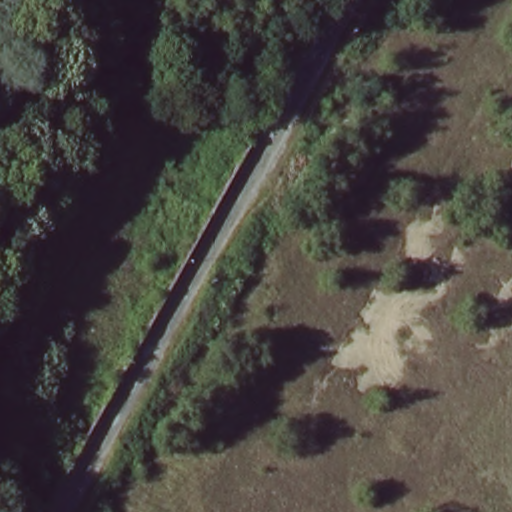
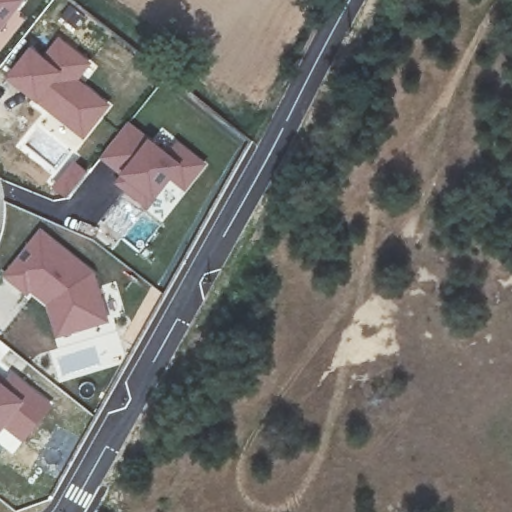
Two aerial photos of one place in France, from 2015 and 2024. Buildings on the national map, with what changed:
new [(0,31),(0,0),(25,0),(0,31)]
new [(32,51),(44,60),(60,41),(88,64),(76,80),(107,107),(83,136),(10,78),(32,51)]
new [(129,123),(168,152),(178,141),(207,165),(184,192),(171,181),(150,211),(114,184),(121,175),(98,158),(100,158),(129,123)]
new [(95,271),(109,323),(56,339),(45,307),(30,295),(27,298),(1,276),(40,229),(95,271)]
new [(4,384),(13,372),(54,405),(24,444),(4,429),(0,434),(0,381),(4,384)]

